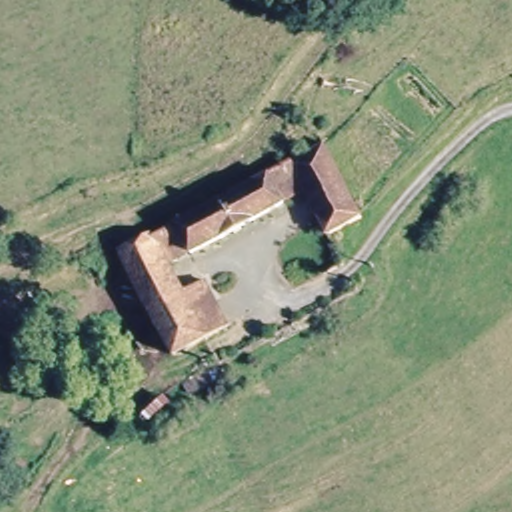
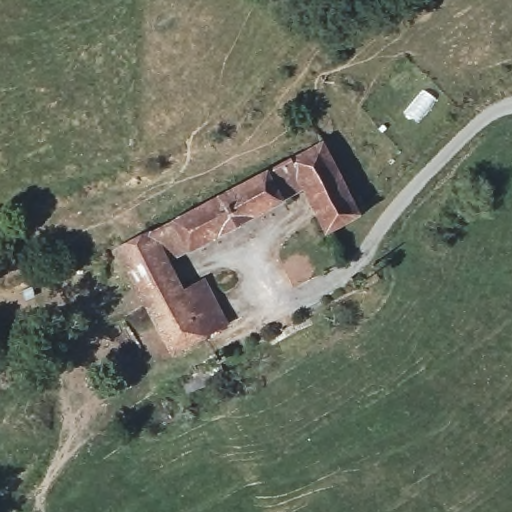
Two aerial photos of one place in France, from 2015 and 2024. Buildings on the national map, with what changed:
unchanged [(185,249),(164,260),(179,292),(202,342),(167,357),(115,254),(142,240),(321,145),(357,219),(325,234),(302,188),(279,199),(282,205),(187,253),(185,249)]
unchanged [(196,284),(219,333),(202,342),(179,292),(196,284)]

